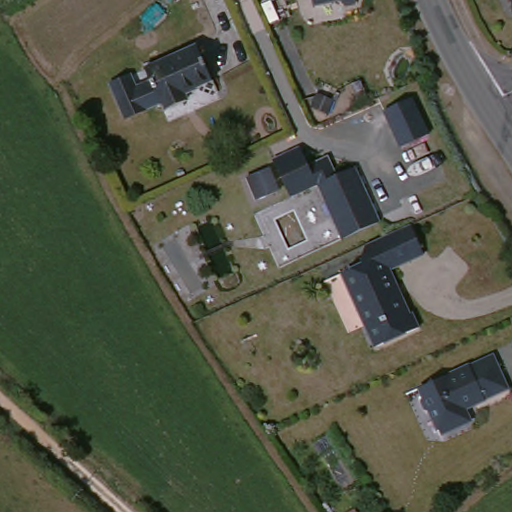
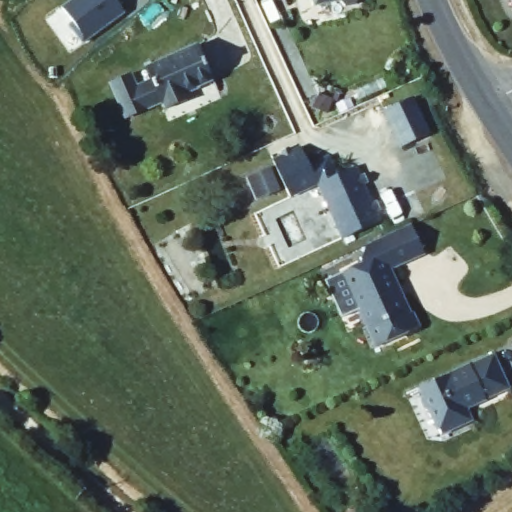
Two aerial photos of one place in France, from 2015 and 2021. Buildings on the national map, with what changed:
new [(63,4),(69,0),(120,0),(119,0),(125,9),(68,50),(55,32),(74,19),(63,4)]
unchanged [(342,8),(336,1),(312,6),(312,0),(358,0),(355,6),(342,8)]
unchanged [(510,9),(509,0),(512,0),(512,9),(510,9)]
unchanged [(217,77),(192,91),(195,97),(174,109),(168,98),(124,115),(109,85),(130,75),(135,87),(152,78),(147,68),(200,42),(217,77)]
unchanged [(408,89),(425,125),(396,138),(380,101),(408,89)]
unchanged [(383,217),(347,235),(320,182),(292,196),(273,161),(302,147),(311,164),(328,155),(338,173),(355,164),(383,217)]
unchanged [(411,223),(425,253),(390,269),(410,312),(412,311),(420,326),(376,346),(342,272),(373,258),(366,244),(411,223)]
unchanged [(505,394),(465,413),(471,425),(441,439),(431,418),(425,416),(420,406),(422,401),(419,393),(489,360),(505,394)]

